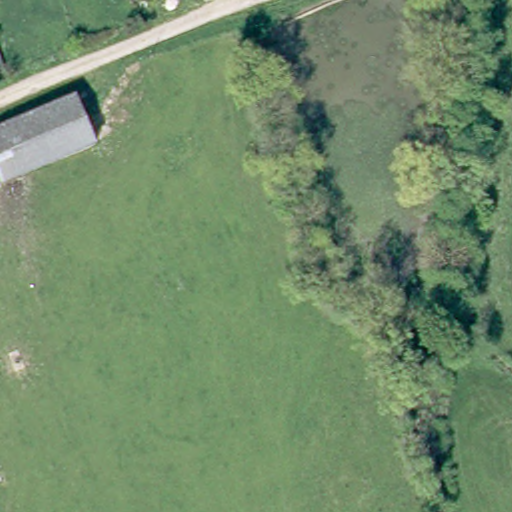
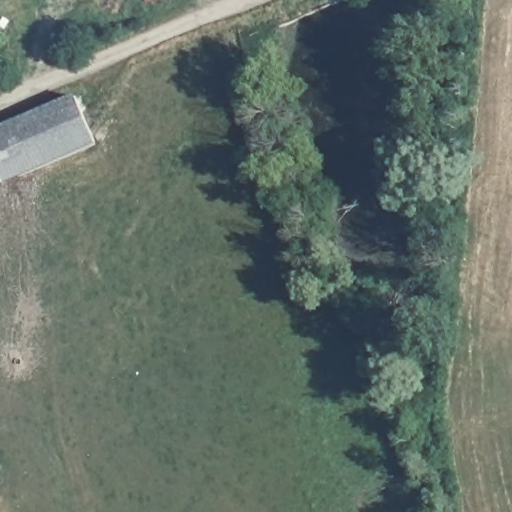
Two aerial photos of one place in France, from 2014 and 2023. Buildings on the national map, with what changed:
unchanged [(7,68),(0,71),(0,51),(7,68)]
unchanged [(78,95),(96,144),(0,178),(0,123),(78,95)]

